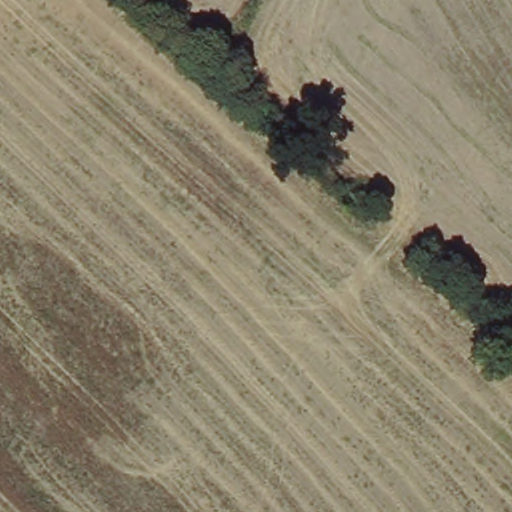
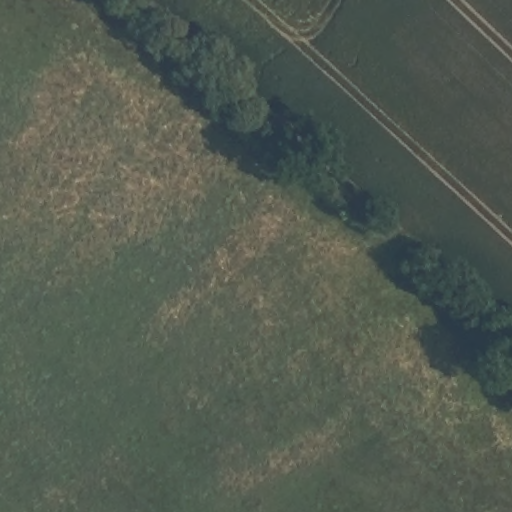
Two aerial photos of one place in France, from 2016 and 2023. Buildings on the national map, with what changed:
[]

